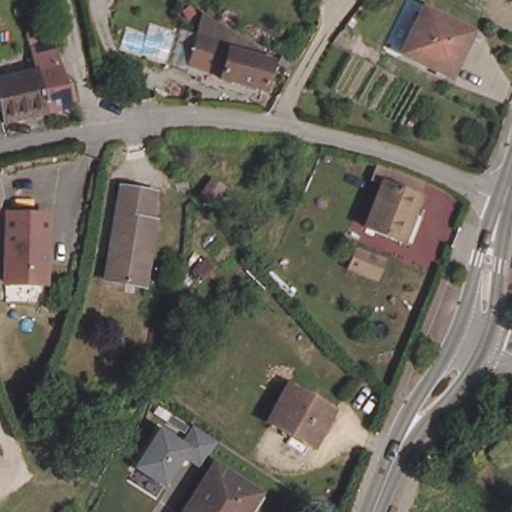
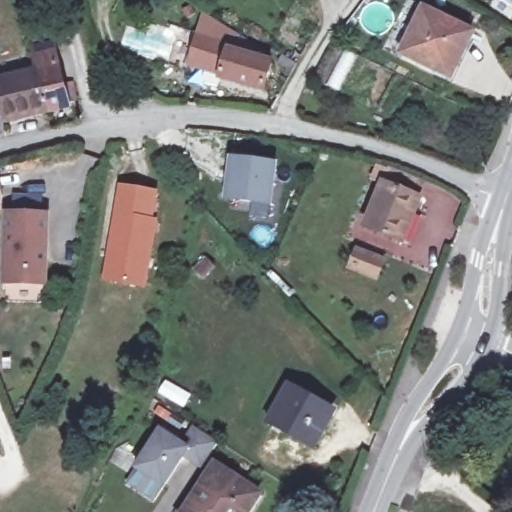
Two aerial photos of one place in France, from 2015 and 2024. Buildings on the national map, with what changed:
unchanged [(463,33),(443,75),(397,54),(417,11),(463,33)]
unchanged [(256,53),(255,57),(266,60),(256,90),(215,79),(216,74),(184,63),(193,34),(200,16),(211,24),(243,46),(256,53)]
unchanged [(26,59),(24,51),(47,47),(50,63),(55,88),(66,85),(69,104),(39,111),(29,71),(26,59)]
unchanged [(289,64),(286,74),(269,62),(274,54),(289,64)]
unchanged [(39,111),(41,116),(0,126),(0,78),(29,71),(39,111)]
new [(279,163),(274,207),(225,200),(230,156),(279,163)]
unchanged [(409,241),(400,238),(364,226),(381,179),(383,180),(388,166),(419,177),(414,192),(416,193),(410,209),(418,213),(409,241)]
demolished [(213,206),(201,199),(210,181),(223,188),(213,206)]
unchanged [(148,218),(153,218),(148,282),(110,280),(117,187),(151,190),(148,218)]
unchanged [(0,199),(0,192),(2,198),(0,199)]
unchanged [(1,298),(3,285),(10,216),(48,220),(43,289),(40,302),(1,298)]
unchanged [(359,254),(385,263),(379,280),(353,272),(359,254)]
unchanged [(301,394),(299,399),(329,414),(314,444),(266,420),(283,386),(301,394)]
unchanged [(166,487),(131,467),(154,424),(191,445),(166,487)]
unchanged [(259,494),(248,512),(186,512),(214,466),(259,494)]

